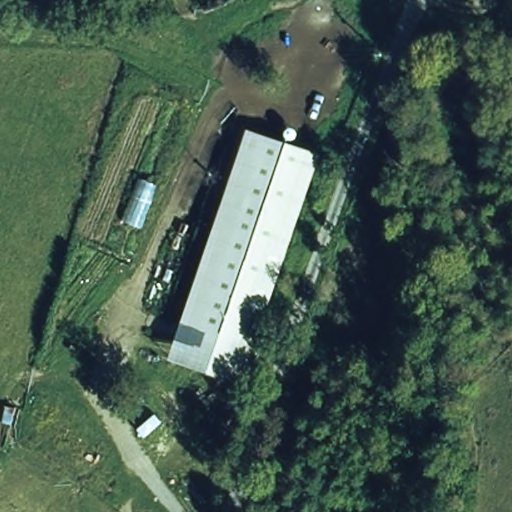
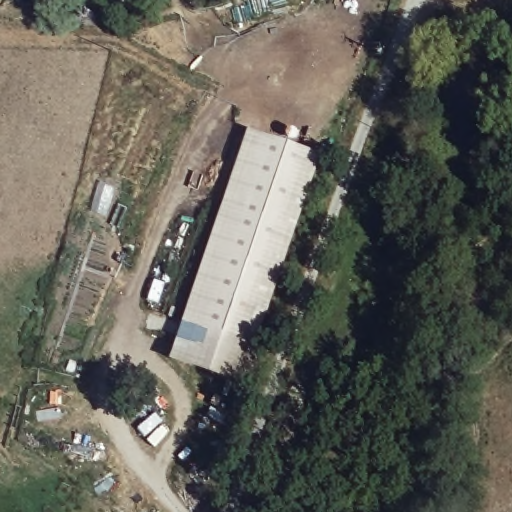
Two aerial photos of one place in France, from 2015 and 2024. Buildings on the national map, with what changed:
unchanged [(469,0),(484,0),(482,5),(469,0)]
unchanged [(245,142),(320,170),(245,381),(170,352),(245,142)]

